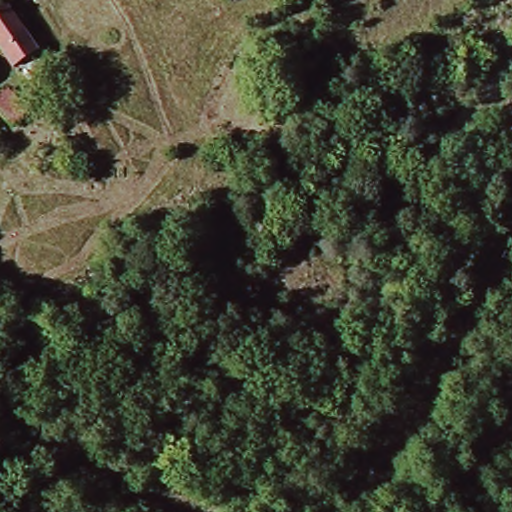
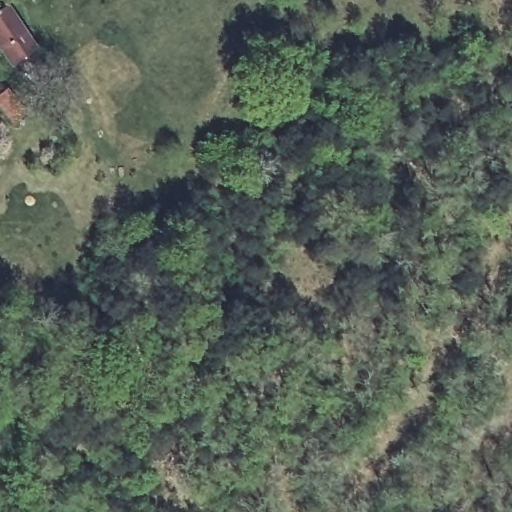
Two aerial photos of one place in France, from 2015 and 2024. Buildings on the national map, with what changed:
unchanged [(34,54),(11,70),(0,54),(0,11),(4,8),(34,54)]
unchanged [(0,94),(14,85),(32,114),(10,132),(0,114),(0,94)]

